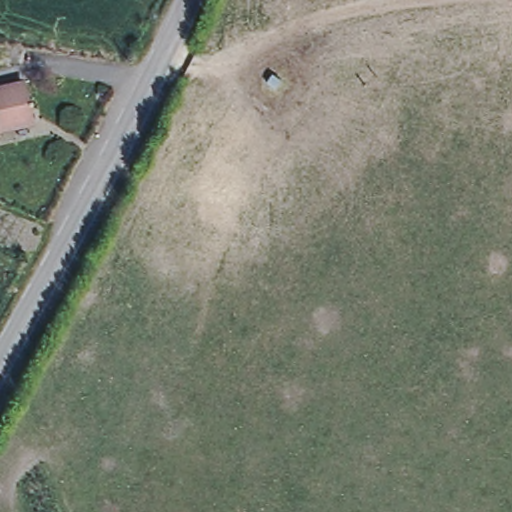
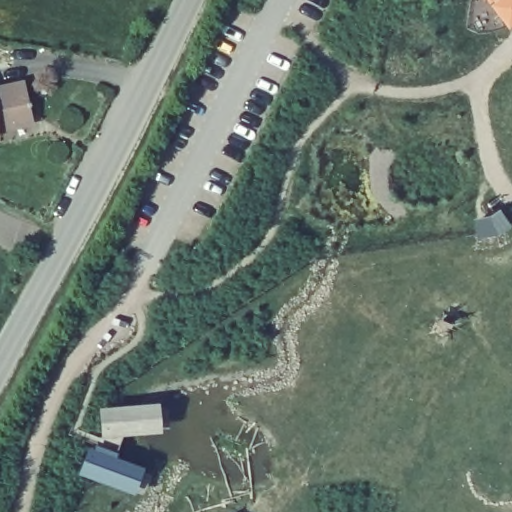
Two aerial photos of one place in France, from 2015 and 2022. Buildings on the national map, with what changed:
unchanged [(25,95),(32,131),(0,138),(0,100),(25,95)]
new [(170,427),(161,426),(162,434),(101,439),(97,409),(160,404),(167,406),(170,427)]
new [(143,496),(136,491),(134,497),(77,476),(87,448),(144,468),(151,474),(143,496)]

